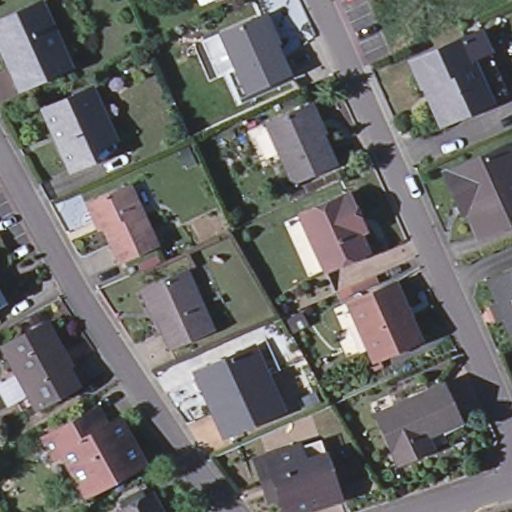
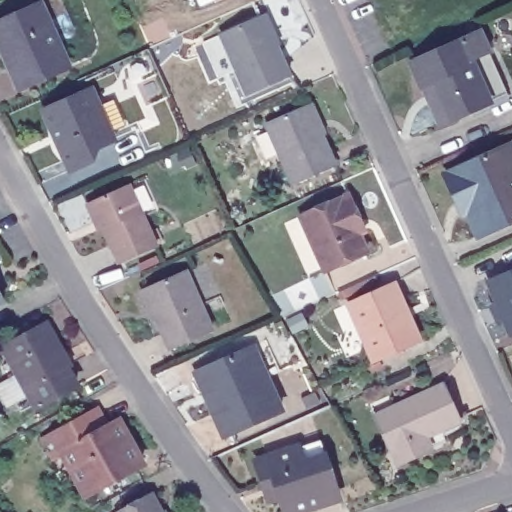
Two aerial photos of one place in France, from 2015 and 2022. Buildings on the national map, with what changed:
unchanged [(15,90),(5,66),(0,56),(0,20),(36,4),(65,68),(15,90)]
unchanged [(267,11),(280,40),(277,41),(291,71),(247,90),(222,31),(262,13),(267,11)]
unchanged [(416,87),(405,63),(475,32),(502,94),(440,122),(433,125),(416,87)]
unchanged [(88,91),(109,140),(89,149),(90,153),(65,165),(42,112),(88,91)]
unchanged [(312,102),(325,130),(322,131),(335,161),(295,180),(268,121),(307,104),(312,102)]
unchanged [(474,237),(457,199),(452,201),(441,175),(505,146),(512,143),(512,220),(474,237)]
unchanged [(93,221),(86,204),(128,185),(155,247),(120,263),(104,228),(98,231),(93,221)]
unchanged [(322,272),(297,216),(345,195),(355,218),(361,230),(355,233),(363,253),(322,272)]
unchanged [(477,280),(512,266),(512,335),(505,339),(477,280)]
unchanged [(207,330),(165,348),(150,319),(148,319),(135,291),(140,289),(180,271),(207,330)]
unchanged [(390,283),(416,339),(368,360),(343,304),(390,283)]
unchanged [(4,376),(17,369),(2,343),(45,320),(62,350),(67,359),(62,362),(74,383),(36,404),(33,399),(20,406),(4,376)]
unchanged [(197,396),(190,381),(193,375),(247,352),(261,345),(275,377),(261,383),(275,416),(225,439),(218,441),(197,396)]
unchanged [(428,450),(414,456),(395,466),(372,420),(371,416),(390,407),(438,385),(455,422),(437,431),(442,443),(428,450)]
unchanged [(37,437),(82,412),(90,407),(99,424),(111,418),(135,462),(80,492),(56,450),(47,455),(37,437)]
unchanged [(255,468),(297,453),(318,447),(323,461),(337,504),(311,512),(281,512),(277,499),(265,503),(261,488),(255,468)]
unchanged [(155,512),(116,512),(146,495),(155,512)]

